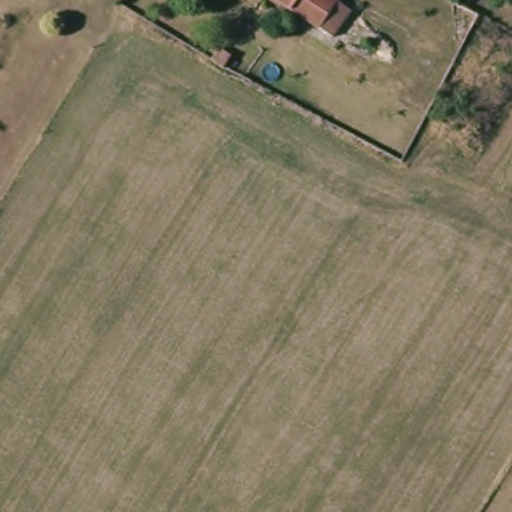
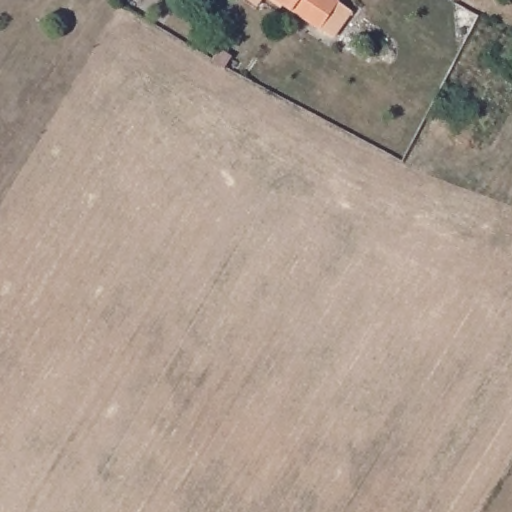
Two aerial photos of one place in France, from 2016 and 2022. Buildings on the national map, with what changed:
unchanged [(333,39),(294,12),(277,0),(336,0),(352,11),(333,39)]
unchanged [(220,65),(227,53),(237,59),(236,61),(244,65),(237,75),(220,65)]

